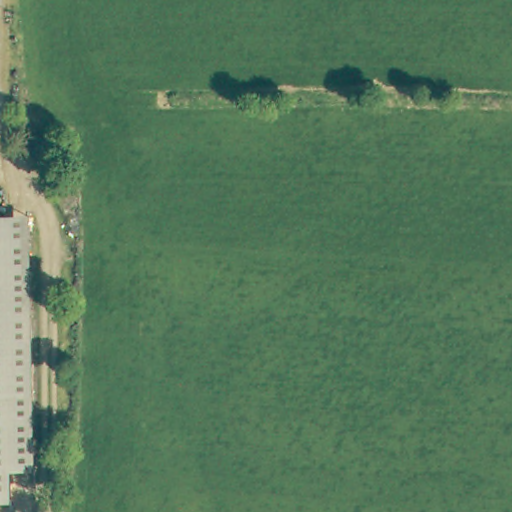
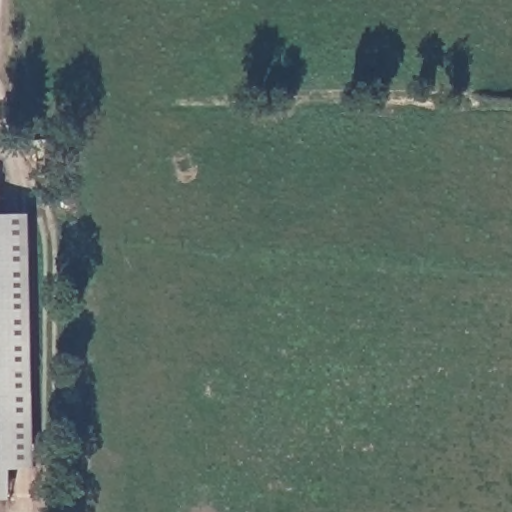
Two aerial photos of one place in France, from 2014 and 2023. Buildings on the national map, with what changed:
unchanged [(34,471),(12,471),(13,502),(0,503),(0,219),(29,218),(34,471)]

